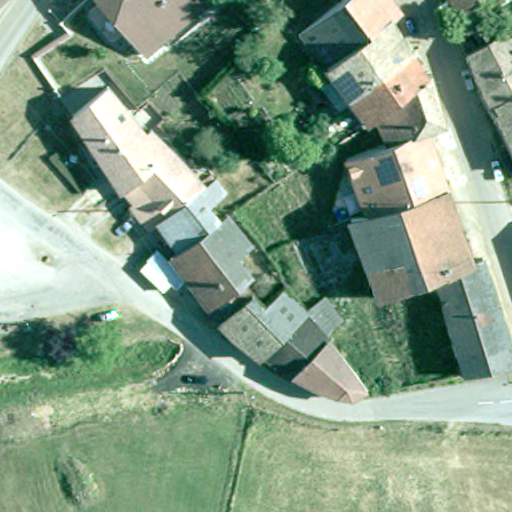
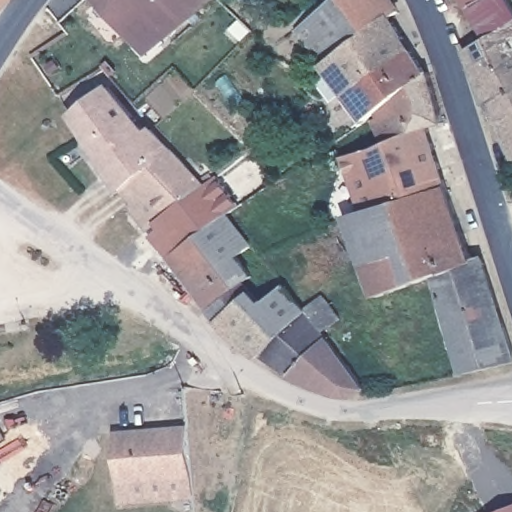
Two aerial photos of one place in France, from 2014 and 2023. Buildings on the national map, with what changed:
unchanged [(142,55),(96,0),(211,0),(142,55)]
unchanged [(314,63),(304,50),(295,39),(335,0),(383,0),(392,12),(383,19),(314,63)]
unchanged [(452,21),(447,0),(473,0),(468,2),(487,37),(462,51),(452,21)]
unchanged [(358,117),(337,90),(323,101),(309,84),(322,72),(314,63),(383,19),(418,73),(372,107),(358,117)]
unchanged [(462,51),(487,37),(512,22),(512,158),(475,85),(462,51)]
unchanged [(368,116),(375,115),(372,107),(418,73),(422,70),(437,121),(422,125),(376,139),(368,116)]
unchanged [(143,227),(123,202),(138,191),(128,177),(115,187),(66,114),(104,83),(140,130),(146,125),(203,182),(152,221),(143,227)]
unchanged [(442,184),(355,207),(335,155),(376,139),(422,125),(442,184)]
unchanged [(152,221),(203,182),(214,174),(225,189),(205,202),(215,215),(172,247),(152,221)]
unchanged [(467,255),(475,253),(508,360),(455,371),(427,267),(367,283),(339,211),(355,207),(442,184),(467,255)]
unchanged [(250,354),(212,320),(200,307),(162,255),(172,247),(215,215),(220,211),(243,245),(230,255),(245,279),(243,281),(253,296),(284,278),(302,303),(253,351),(250,354)]
unchanged [(315,319),(365,383),(348,395),(327,393),(305,382),(253,351),(302,303),(315,319)]
new [(197,500),(120,506),(119,483),(115,431),(190,425),(195,478),(197,500)]
new [(512,512),(498,512),(512,506),(512,512)]

